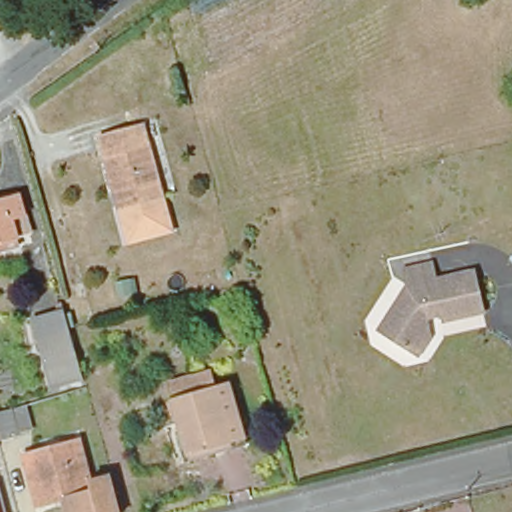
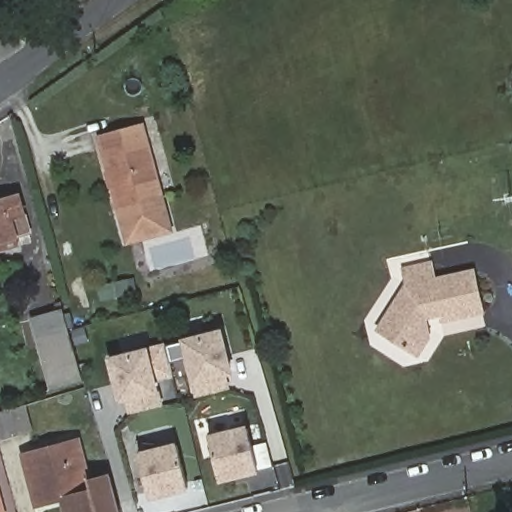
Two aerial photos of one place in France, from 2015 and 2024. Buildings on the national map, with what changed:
unchanged [(95,135),(138,122),(167,229),(123,243),(95,135)]
unchanged [(0,245),(0,202),(17,197),(22,217),(28,237),(15,240),(0,245)]
unchanged [(412,351),(403,346),(373,326),(401,281),(397,265),(424,258),(428,276),(467,267),(478,310),(439,318),(437,311),(419,316),(420,320),(424,333),(412,351)]
unchanged [(66,331),(80,381),(51,390),(32,323),(61,315),(66,331)]
new [(195,397),(193,385),(182,339),(223,328),(235,375),(225,376),(229,388),(195,397)]
new [(129,415),(127,402),(121,403),(110,357),(150,347),(161,392),(164,405),(129,415)]
demolished [(234,450),(188,461),(175,407),(221,395),(234,450)]
unchanged [(22,434),(3,439),(0,428),(0,412),(16,407),(22,434)]
new [(260,473),(221,483),(208,434),(248,425),(260,473)]
new [(178,442),(190,490),(151,499),(138,451),(178,442)]
unchanged [(77,443),(88,480),(93,500),(63,508),(49,512),(38,512),(22,459),(77,443)]
unchanged [(121,512),(64,512),(63,508),(93,500),(88,480),(112,473),(121,512)]

